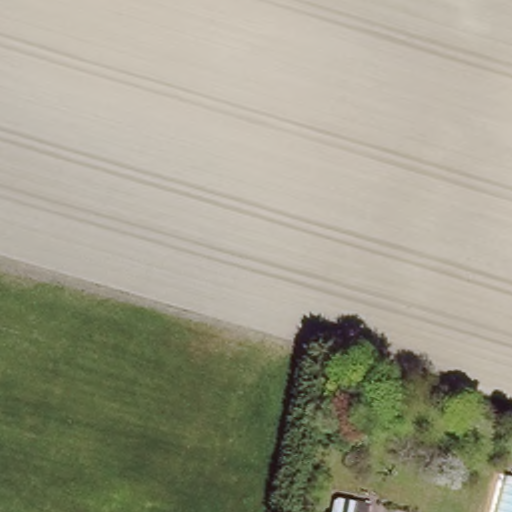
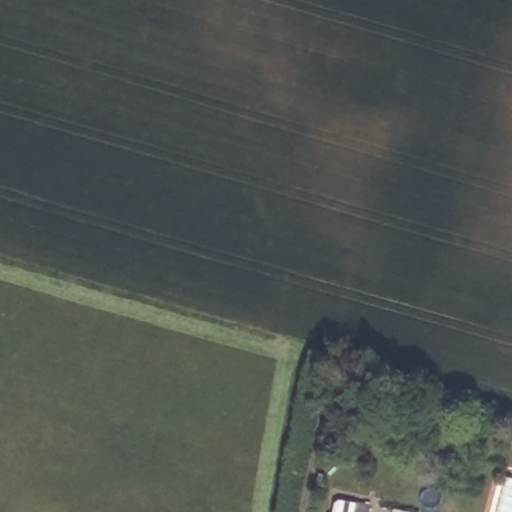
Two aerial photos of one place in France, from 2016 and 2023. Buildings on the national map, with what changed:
unchanged [(332,503),(337,500),(354,503),(369,506),(367,512),(330,512),(332,503)]

